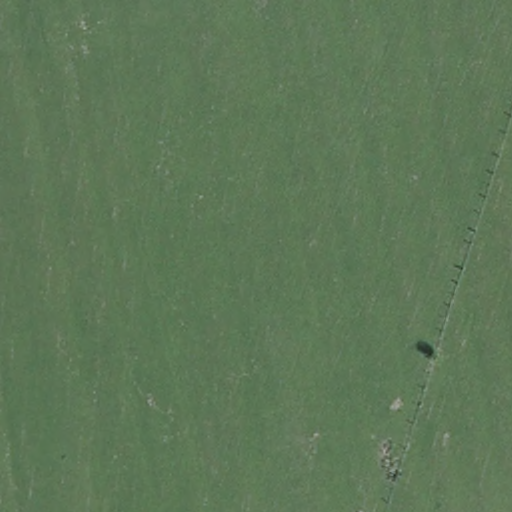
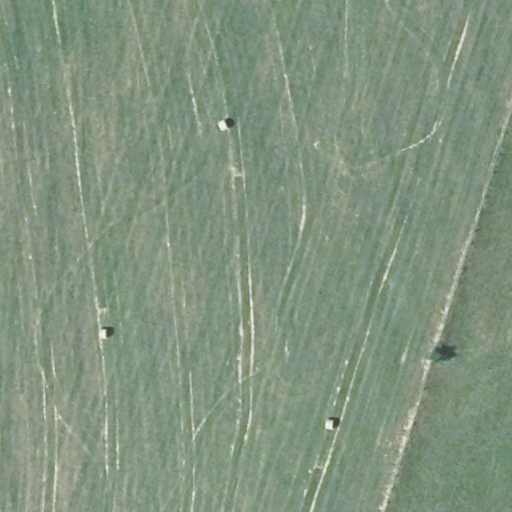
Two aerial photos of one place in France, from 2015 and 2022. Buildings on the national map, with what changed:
[]

